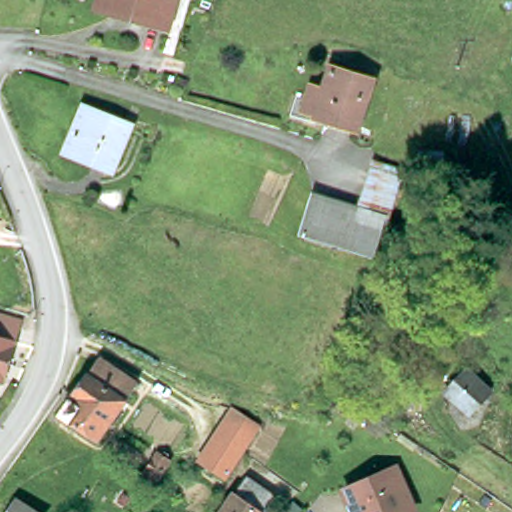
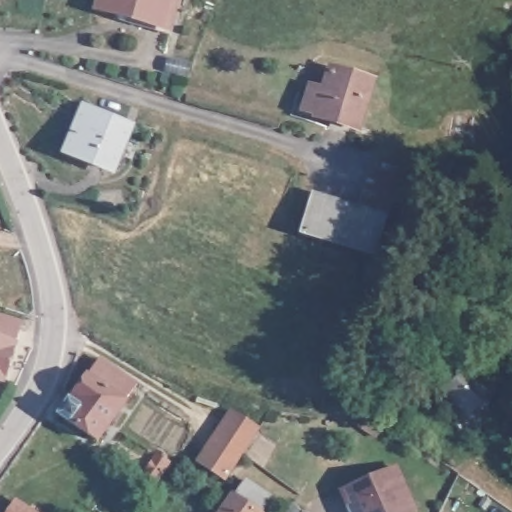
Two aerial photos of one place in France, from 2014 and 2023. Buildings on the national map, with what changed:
unchanged [(99,6),(100,0),(174,0),(168,26),(99,6)]
unchanged [(362,133),(328,121),(310,113),(327,71),(342,77),(379,90),(362,133)]
unchanged [(67,159),(82,113),(126,126),(111,172),(67,159)]
unchanged [(379,238),(375,253),(304,233),(315,195),(359,208),(371,176),(395,185),(377,213),(387,216),(379,238)]
unchanged [(1,392),(0,392),(0,332),(18,338),(1,392)]
unchanged [(98,437),(63,414),(97,361),(132,386),(98,437)]
unchanged [(485,392),(464,415),(437,389),(457,366),(485,392)]
unchanged [(259,424),(229,477),(197,460),(227,407),(259,424)]
unchanged [(153,457),(166,465),(152,488),(139,479),(153,457)]
unchanged [(348,512),(340,488),(389,470),(403,508),(393,512),(348,512)]
unchanged [(227,512),(237,499),(239,500),(250,485),(270,501),(262,512),(227,512)]
unchanged [(23,512),(9,512),(14,505),(23,512)]

